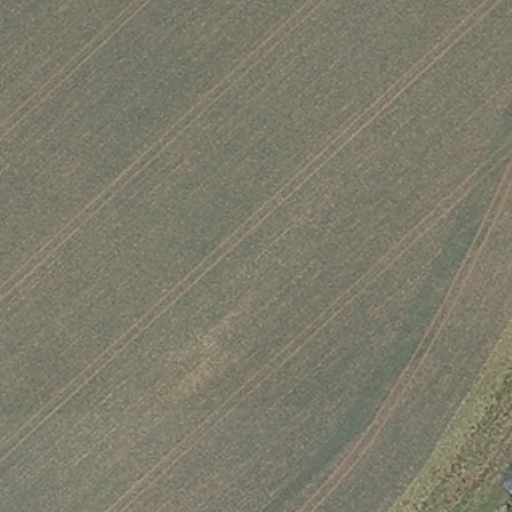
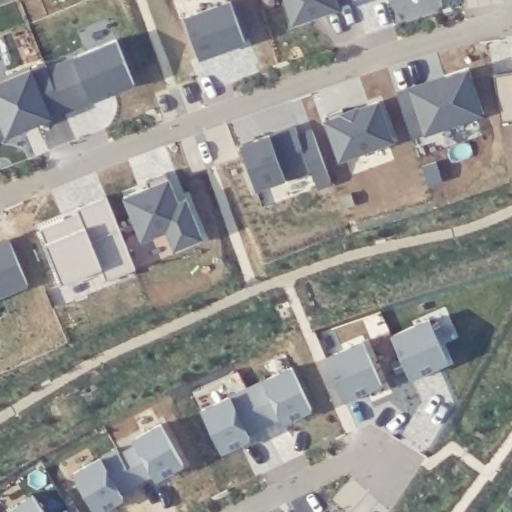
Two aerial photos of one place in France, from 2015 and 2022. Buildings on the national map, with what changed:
new [(294,23),(286,0),(338,0),(340,7),(294,23)]
new [(232,1),(246,41),(200,56),(186,17),(232,1)]
new [(117,39),(135,83),(114,91),(112,87),(92,96),(93,100),(66,111),(48,67),(117,39)]
new [(46,63),(65,110),(36,121),(33,116),(23,121),(25,126),(8,133),(0,114),(0,82),(46,63)]
new [(399,94),(415,89),(470,71),(482,111),(428,129),(414,135),(399,94)]
new [(512,71),(512,118),(502,120),(495,74),(512,71)]
new [(326,115),(343,109),(344,112),(358,107),(358,109),(379,101),(393,138),(342,157),(326,115)]
new [(296,125),(300,135),(314,130),(333,181),(319,186),(312,168),(257,188),(242,145),(296,125)]
new [(125,196),(150,186),(147,180),(168,171),(180,201),(188,197),(204,236),(176,248),(168,229),(143,239),(125,196)]
new [(65,218),(70,232),(86,226),(78,208),(107,196),(137,267),(107,279),(102,267),(63,282),(41,228),(65,218)]
new [(10,240),(28,283),(0,295),(0,244),(10,240)]
new [(393,333),(431,317),(449,362),(412,378),(393,333)]
new [(364,341),(382,382),(361,392),(362,395),(346,402),(326,357),(364,341)]
new [(293,366),(313,407),(284,421),(281,417),(265,424),(248,388),(293,366)]
new [(199,408),(230,394),(247,386),(266,425),(250,433),(253,441),(222,455),(199,408)]
new [(137,446),(134,440),(161,425),(183,464),(156,479),(153,474),(137,483),(121,454),(137,446)]
new [(74,474),(118,450),(137,483),(122,491),(126,497),(98,512),(97,512),(74,474)]
new [(33,494),(45,512),(6,512),(33,494)]

